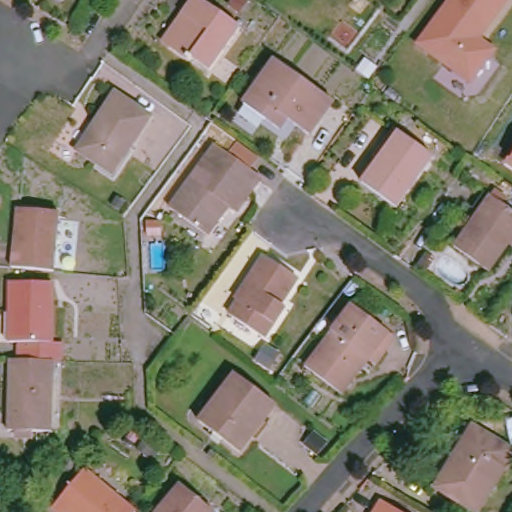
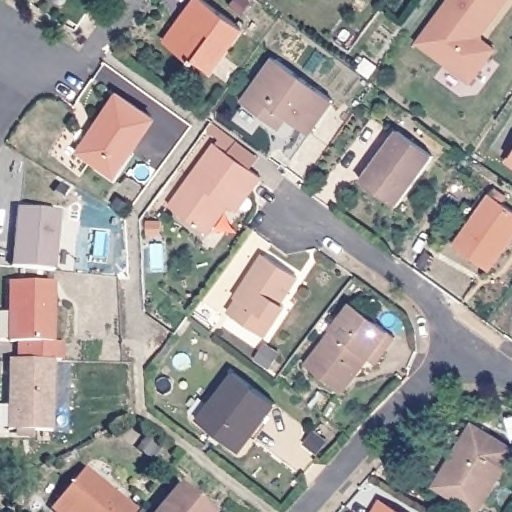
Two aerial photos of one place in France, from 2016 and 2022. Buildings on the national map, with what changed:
unchanged [(216,9),(223,0),(250,0),(234,21),(205,64),(186,51),(183,55),(165,42),(157,37),(177,8),(183,0),(203,0),(216,9)]
unchanged [(444,0),(501,0),(475,35),(475,41),(488,50),(464,83),(411,44),(444,0)]
unchanged [(327,100),(305,130),(285,117),(275,130),(240,105),(272,60),(327,100)]
unchanged [(148,116),(112,172),(75,148),(112,92),(148,116)]
unchanged [(390,204),(355,178),(390,129),(425,154),(390,204)]
unchanged [(218,208),(198,236),(165,213),(211,146),(252,176),(240,193),(225,214),(218,208)]
unchanged [(512,155),(512,164),(507,161),(512,155)]
unchanged [(512,214),(512,225),(481,269),(447,244),(482,194),(512,214)]
unchanged [(55,211),(50,270),(3,265),(8,207),(55,211)]
unchanged [(232,299),(236,302),(265,262),(291,280),(275,304),(278,307),(258,336),(224,312),(232,299)]
unchanged [(16,338),(5,337),(5,279),(46,279),(47,337),(55,337),(55,360),(47,360),(15,359),(16,338)]
unchanged [(387,337),(369,365),(357,357),(341,379),(345,381),(336,393),(298,366),(343,304),(387,337)]
unchanged [(15,359),(47,360),(46,429),(4,428),(5,359),(15,359)]
unchanged [(271,405),(235,454),(196,425),(233,377),(271,405)]
unchanged [(505,448),(471,507),(430,483),(465,425),(505,448)]
unchanged [(64,512),(60,509),(58,512),(55,512),(45,504),(75,464),(131,510),(130,512),(64,512)]
unchanged [(206,512),(155,512),(175,485),(207,509),(206,512)]
unchanged [(365,512),(372,499),(394,512),(365,512)]

